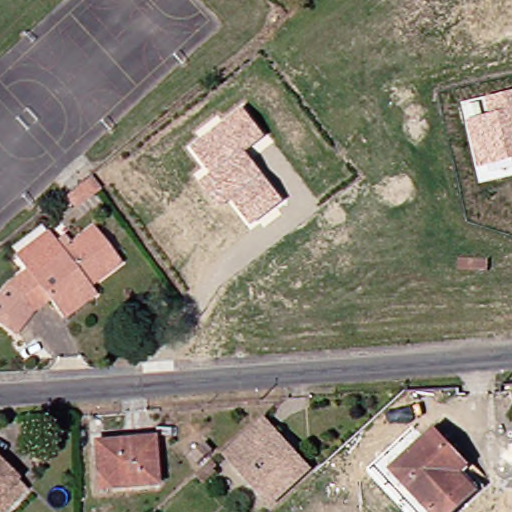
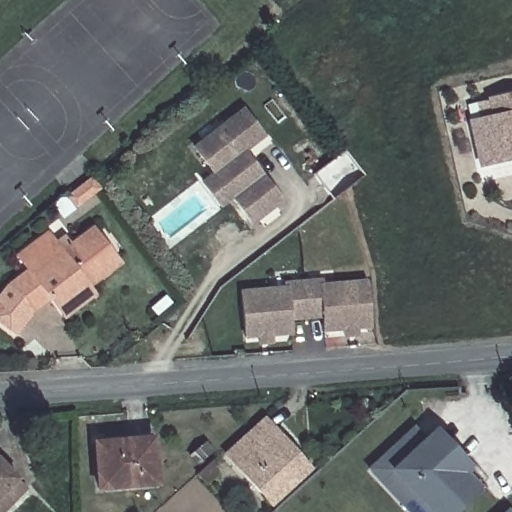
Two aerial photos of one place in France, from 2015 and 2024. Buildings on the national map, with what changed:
unchanged [(512,92),(512,160),(478,167),(468,121),(489,116),(485,97),(512,92)]
unchanged [(265,135),(245,154),(283,201),(251,225),(232,199),(219,209),(200,182),(211,174),(192,147),(243,108),(265,135)]
unchanged [(84,190),(100,177),(112,191),(95,204),(84,190)]
unchanged [(48,296),(41,287),(20,302),(3,332),(0,330),(0,278),(1,276),(19,261),(14,255),(44,232),(53,242),(83,218),(108,249),(77,273),(87,285),(59,309),(48,296)]
new [(370,329),(358,330),(358,336),(342,338),(341,331),(322,333),(321,319),(291,321),(292,336),(272,337),(272,343),(257,345),(257,338),(243,340),(239,290),(282,286),(282,281),(322,278),(322,283),(365,279),(370,329)]
unchanged [(302,466),(264,503),(226,465),(217,456),(237,436),(254,418),(302,466)]
unchanged [(439,448),(459,469),(476,486),(468,493),(449,512),(424,512),(385,471),(418,441),(426,433),(439,448)]
unchanged [(112,440),(145,438),(145,442),(148,484),(90,487),(86,442),(112,440)]
unchanged [(0,466),(10,476),(0,487),(0,466)]
unchanged [(219,466),(223,471),(219,475),(221,477),(210,488),(204,481),(215,470),(219,466)]
unchanged [(0,510),(0,487),(10,476),(22,488),(0,510)]
new [(512,507),(512,512),(503,512),(510,505),(512,507)]

